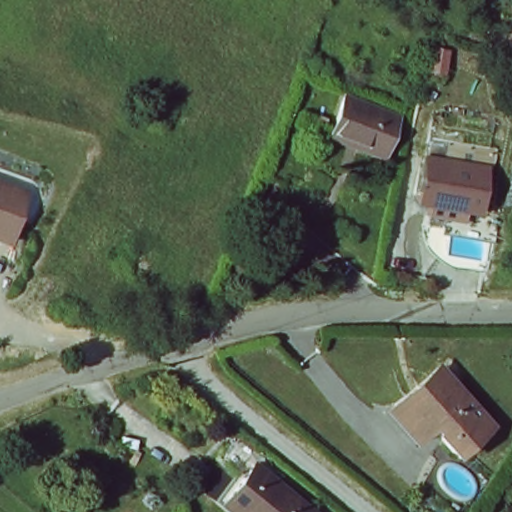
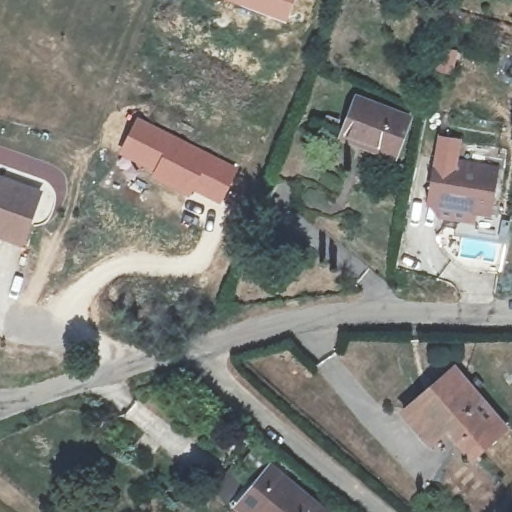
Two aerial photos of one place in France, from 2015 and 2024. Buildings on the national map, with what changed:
new [(287,24),(224,0),(298,0),(287,24)]
unchanged [(365,95),(370,97),(398,110),(407,115),(387,160),(386,160),(355,145),(345,142),(365,95)]
new [(136,116),(239,167),(220,205),(193,191),(190,197),(150,176),(151,172),(117,154),(136,116)]
unchanged [(485,220),(475,218),(437,210),(428,196),(435,162),(485,174),(495,175),(485,220)]
unchanged [(32,207),(18,256),(0,249),(0,193),(32,207)]
unchanged [(470,452),(447,428),(440,434),(410,401),(430,385),(452,365),(461,376),(503,423),(470,452)]
unchanged [(316,512),(252,512),(242,504),(268,472),(316,512)]

